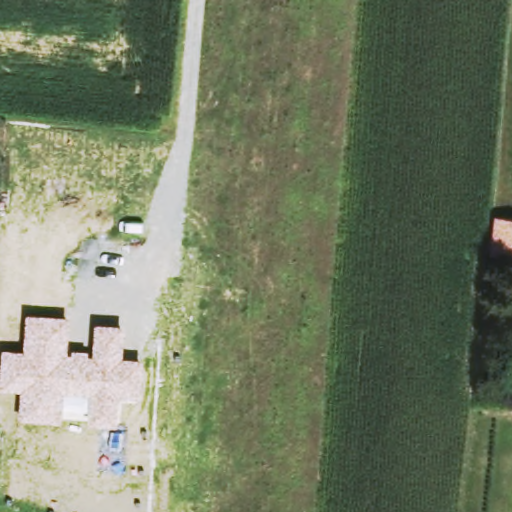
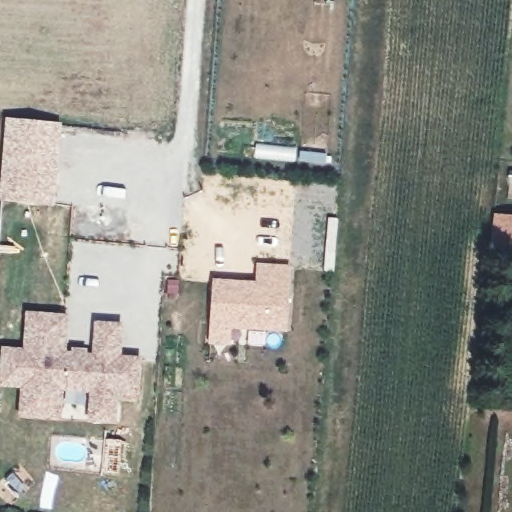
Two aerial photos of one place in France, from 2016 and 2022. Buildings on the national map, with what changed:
new [(62,124),(55,207),(0,201),(5,118),(62,124)]
new [(512,218),(512,253),(500,252),(503,217),(512,218)]
new [(256,283),(257,265),(291,267),(287,333),(232,330),(231,347),(208,345),(213,280),(256,283)]
unchanged [(89,413),(90,394),(58,392),(57,411),(19,408),(20,389),(0,388),(0,360),(0,353),(23,355),(25,318),(63,321),(61,357),(93,360),(95,327),(119,330),(117,362),(138,363),(135,397),(114,396),(113,415),(89,413)]
new [(57,411),(58,392),(90,394),(89,413),(113,415),(112,425),(18,418),(19,408),(57,411)]

